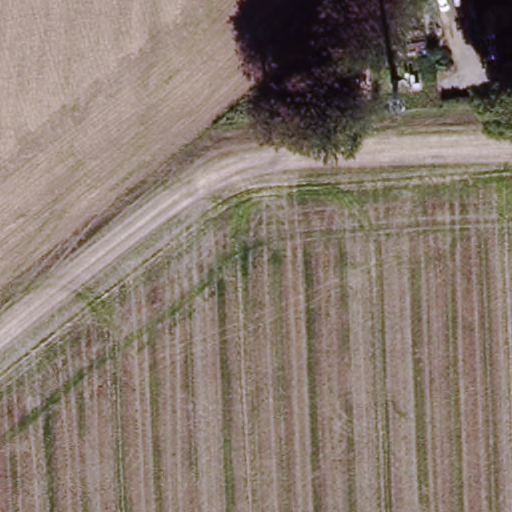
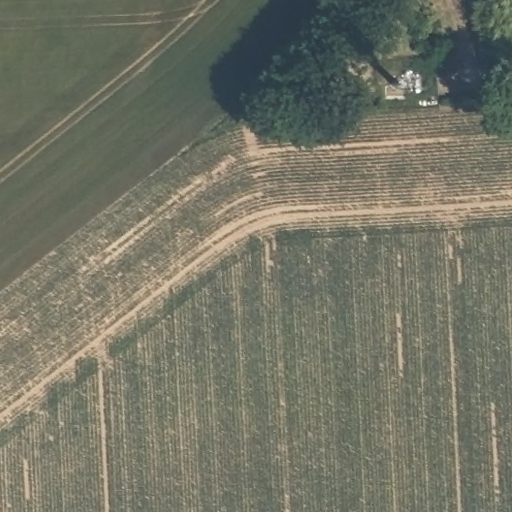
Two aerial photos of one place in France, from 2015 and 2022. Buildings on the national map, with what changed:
[]

